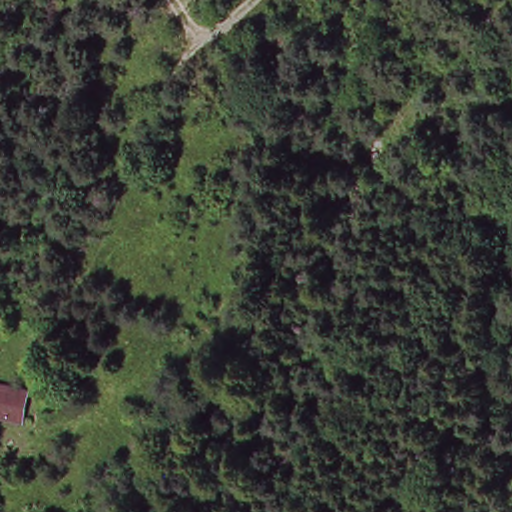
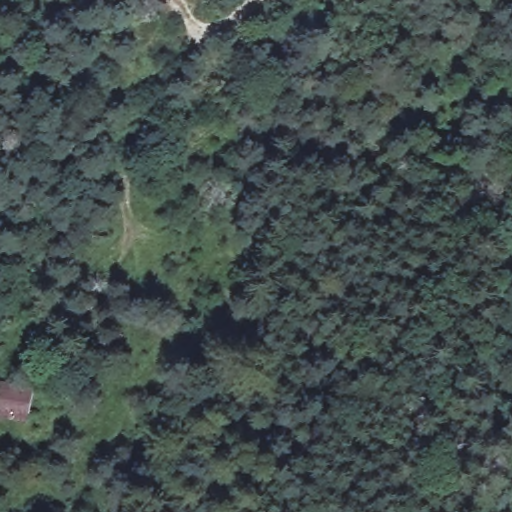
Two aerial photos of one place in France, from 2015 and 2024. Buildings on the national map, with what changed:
unchanged [(0,383),(30,389),(23,421),(0,418),(0,383)]

